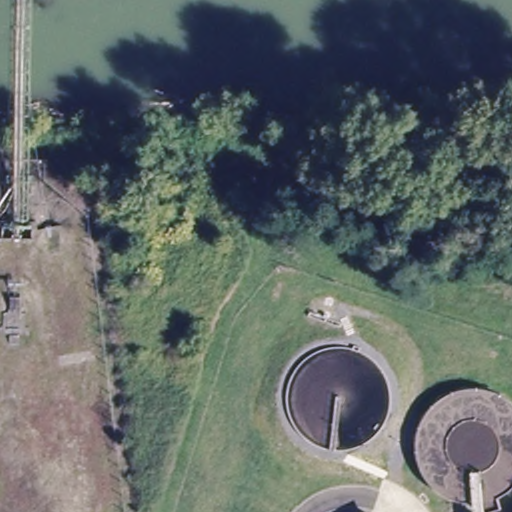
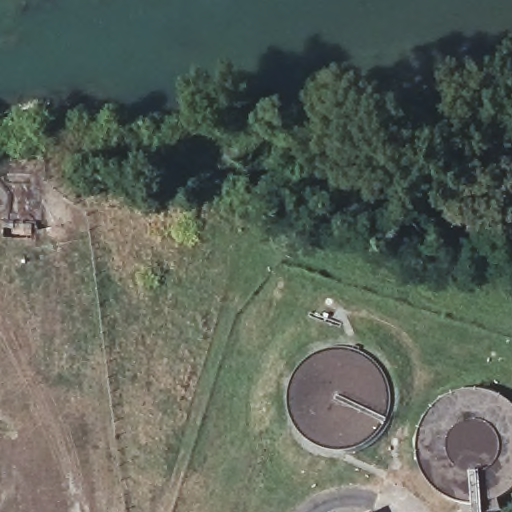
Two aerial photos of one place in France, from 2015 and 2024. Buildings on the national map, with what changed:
[]

